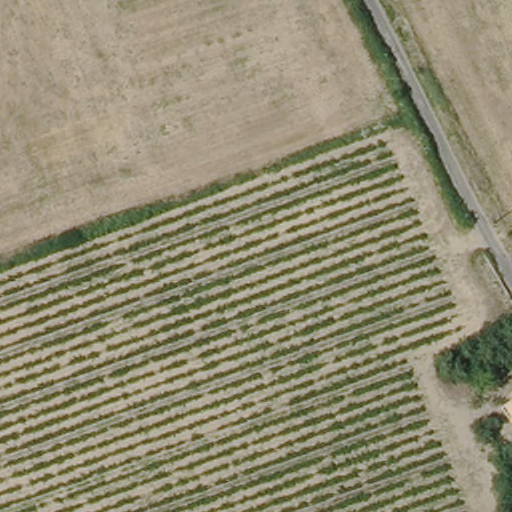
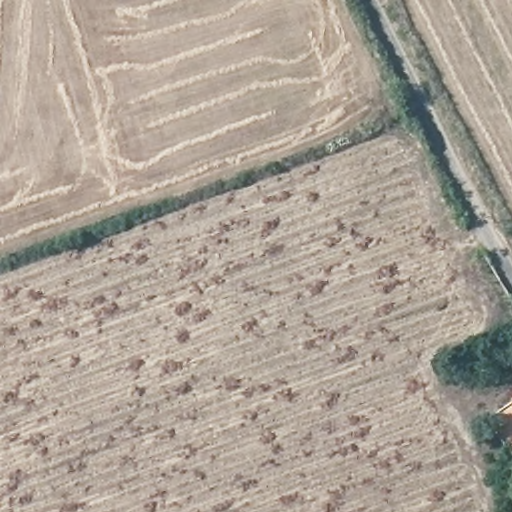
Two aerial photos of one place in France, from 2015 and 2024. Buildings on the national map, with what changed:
unchanged [(510,358),(512,358),(512,365),(510,358)]

